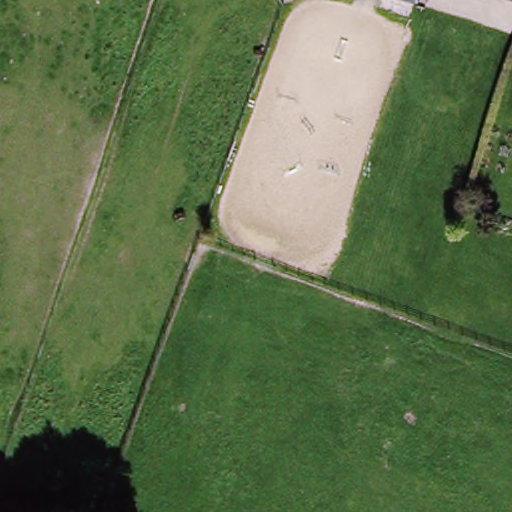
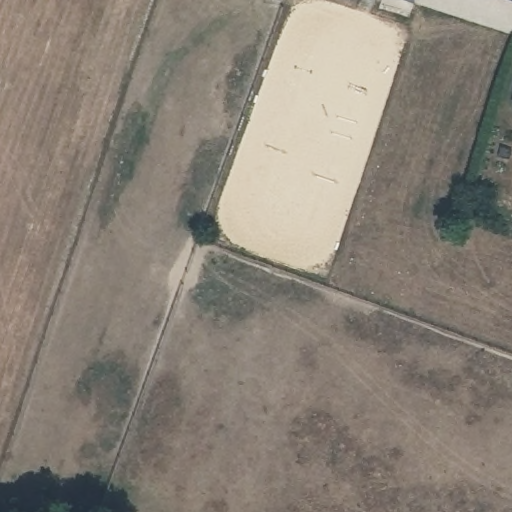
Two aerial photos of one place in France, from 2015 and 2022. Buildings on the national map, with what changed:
unchanged [(407,10),(392,5),(393,0),(411,0),(407,10)]
unchanged [(512,2),(504,0),(512,0),(512,2)]

